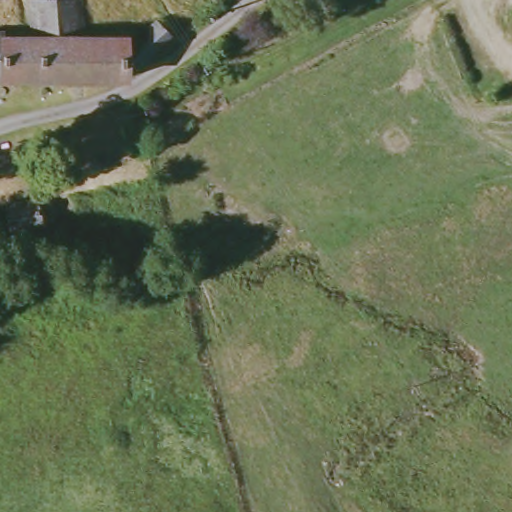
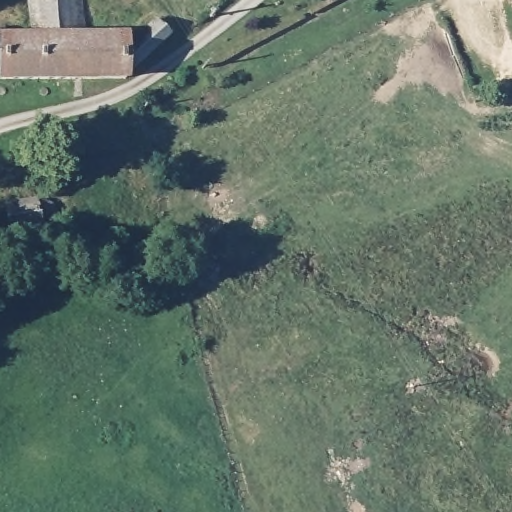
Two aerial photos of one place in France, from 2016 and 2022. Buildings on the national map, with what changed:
unchanged [(78,37),(120,38),(121,50),(154,20),(166,32),(162,36),(120,74),(119,79),(113,79),(0,81),(0,40),(25,40),(27,0),(77,0),(78,37)]
unchanged [(31,199),(41,198),(47,204),(48,211),(45,217),(36,217),(37,224),(5,227),(1,199),(30,196),(31,199)]

